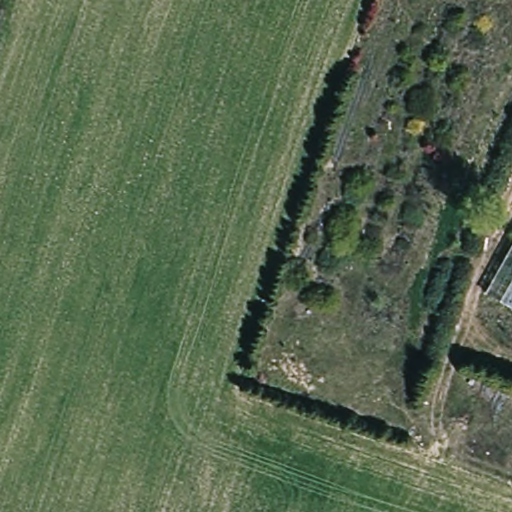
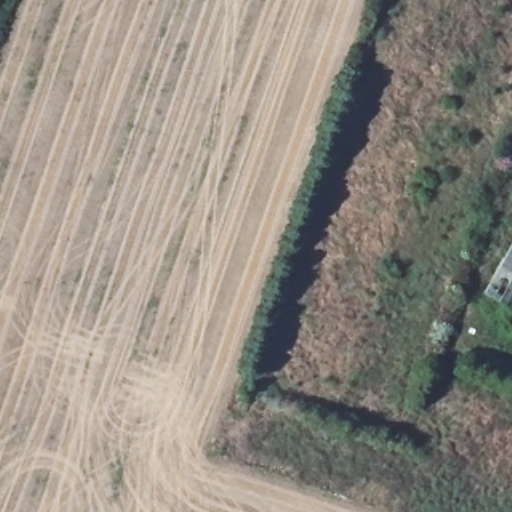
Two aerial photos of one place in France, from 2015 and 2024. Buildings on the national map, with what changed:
unchanged [(481,300),(512,244),(512,317),(481,300)]

